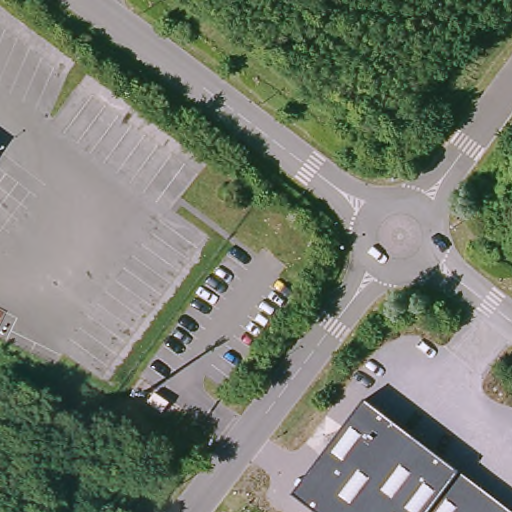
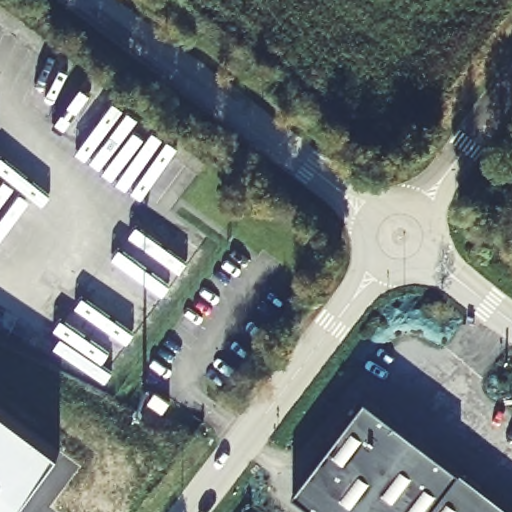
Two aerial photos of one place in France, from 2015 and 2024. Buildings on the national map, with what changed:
unchanged [(512,512),(314,512),(292,495),(365,400),(512,511),(512,512)]
new [(60,448),(13,512),(0,512),(0,403),(60,448)]

